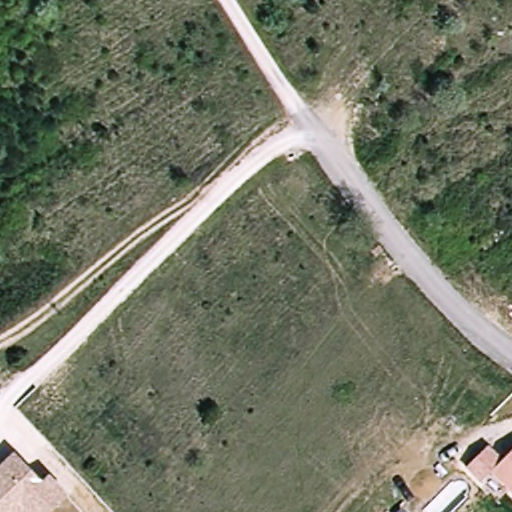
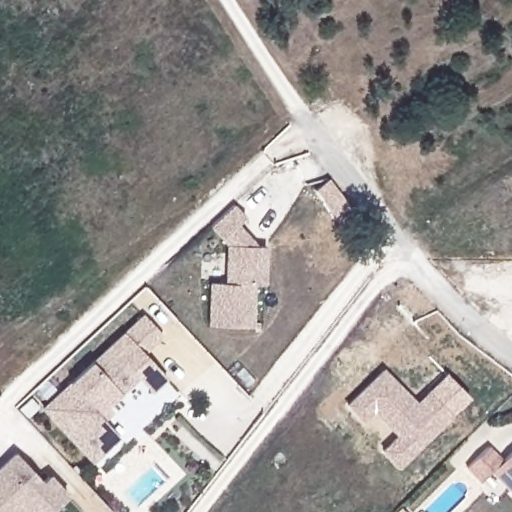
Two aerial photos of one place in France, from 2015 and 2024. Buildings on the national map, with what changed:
new [(224,284),(227,244),(221,238),(209,225),(233,204),(246,217),(238,224),(259,247),(267,246),(265,286),(255,285),(253,329),(208,327),(210,283),(224,284)]
unchanged [(379,247),(372,255),(366,248),(373,241),(379,247)]
new [(68,382),(90,361),(123,331),(143,314),(164,337),(145,355),(168,379),(152,393),(140,380),(123,395),(108,408),(113,413),(103,420),(121,439),(93,464),(40,409),(68,382)]
new [(368,405),(358,415),(349,406),(383,370),(416,401),(444,375),(468,399),(402,463),(386,447),(398,435),(368,405)]
unchanged [(492,472),(481,483),(466,468),(489,447),(504,461),(512,451),(512,493),(492,472)]
unchanged [(43,482),(50,476),(68,496),(50,512),(23,512),(0,512),(0,466),(14,453),(43,482)]
new [(406,512),(395,512),(401,507),(406,512)]

